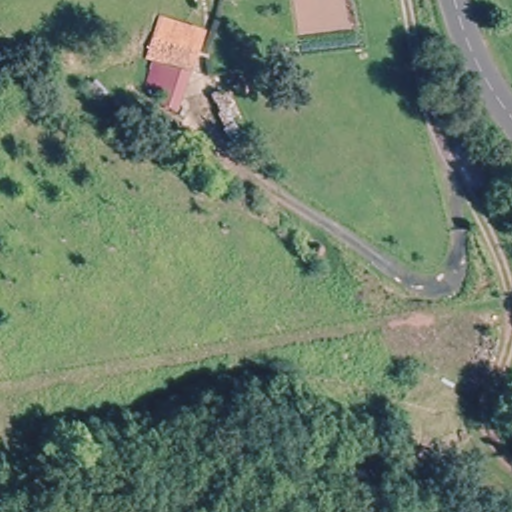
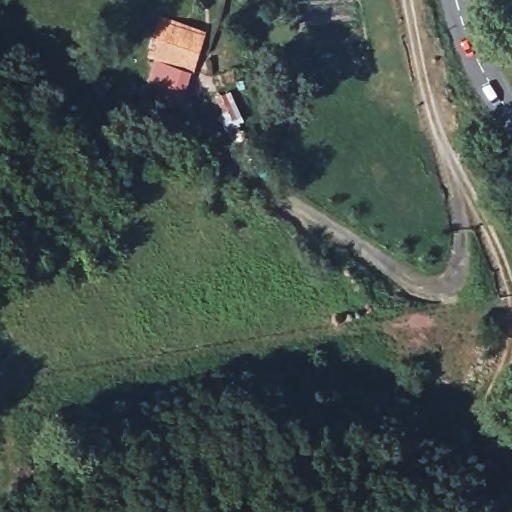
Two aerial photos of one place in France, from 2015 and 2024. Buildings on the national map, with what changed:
unchanged [(198,31),(196,64),(157,60),(159,28),(198,31)]

